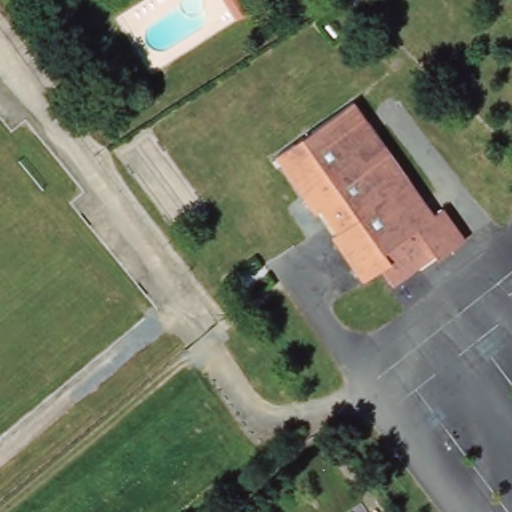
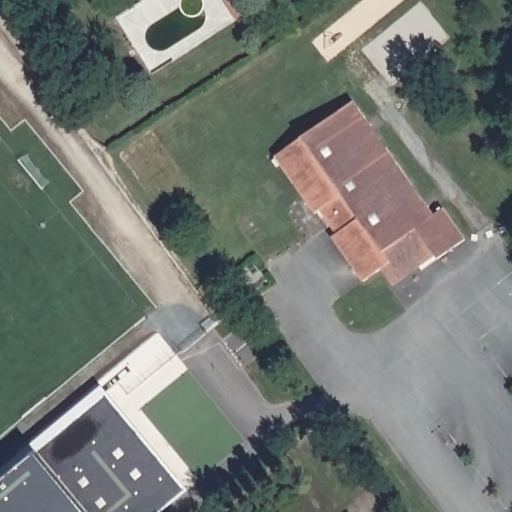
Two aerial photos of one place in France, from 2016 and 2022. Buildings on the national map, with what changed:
unchanged [(239,0),(241,4),(231,11),(224,0),(239,0)]
unchanged [(392,280),(381,264),(363,276),(331,232),(336,228),(319,205),(314,208),(274,151),(353,96),(433,210),(442,203),(465,235),(437,254),(434,250),(418,262),(392,280)]
new [(101,385),(187,489),(159,512),(0,512),(0,470),(101,385)]

